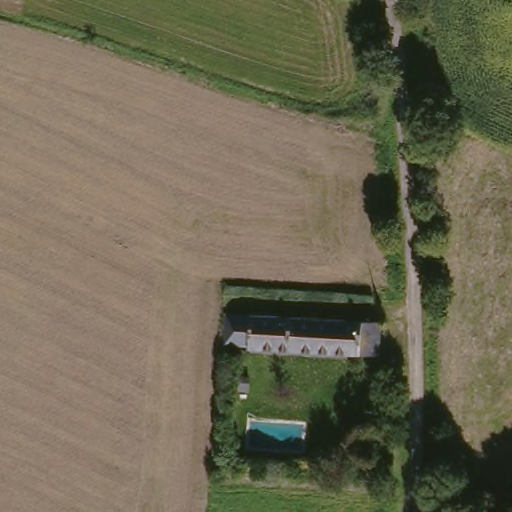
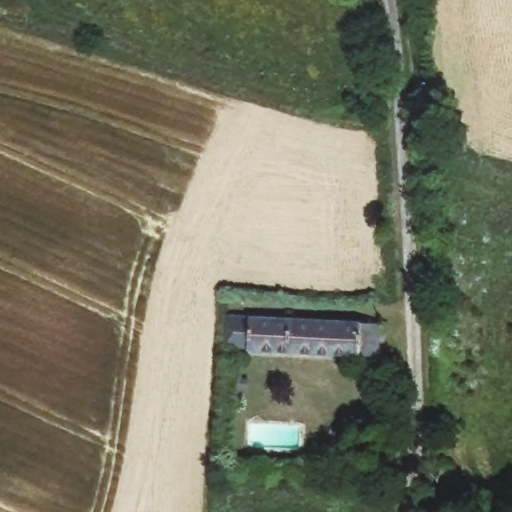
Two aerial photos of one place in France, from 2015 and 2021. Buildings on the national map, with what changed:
unchanged [(223,316),(379,324),(376,358),(244,352),(245,347),(222,346),(223,316)]

